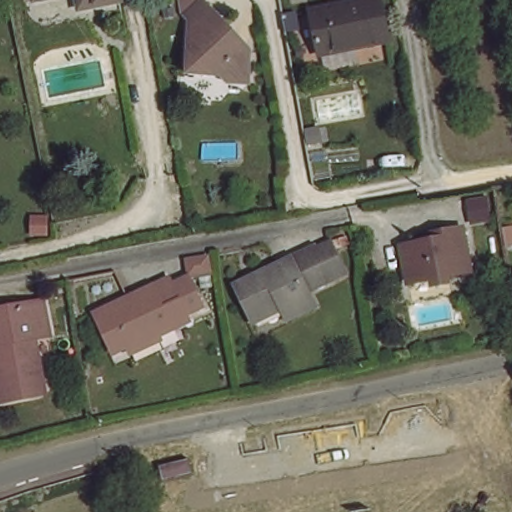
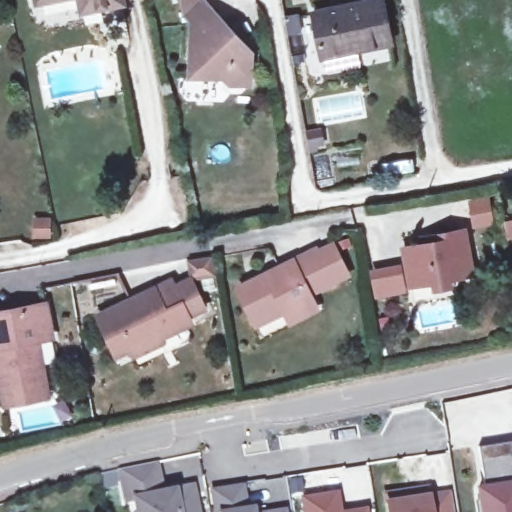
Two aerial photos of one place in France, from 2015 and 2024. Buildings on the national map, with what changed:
unchanged [(81,0),(121,0),(121,2),(94,7),(83,9),(81,0)]
unchanged [(224,27),(232,36),(235,33),(253,52),(247,58),(252,64),(251,84),(231,84),(223,77),(190,75),(191,27),(196,27),(198,25),(188,15),(204,1),(213,10),(226,24),(224,27)]
unchanged [(387,47),(319,62),(309,19),(377,4),(387,47)]
unchanged [(411,283),(404,246),(440,240),(439,233),(464,229),(472,272),(411,283)]
unchanged [(313,307),(286,320),(281,309),(253,323),(235,287),(312,249),(329,241),(344,272),(328,280),(305,291),(313,307)]
unchanged [(175,334),(161,341),(163,346),(136,359),(133,352),(118,359),(100,321),(133,305),(172,286),(174,290),(191,282),(205,311),(188,320),(191,326),(175,334)]
unchanged [(57,341),(42,344),(53,400),(11,409),(0,353),(0,319),(50,308),(57,341)]
new [(484,487),(479,445),(512,440),(512,512),(483,512),(479,488),(484,487)]
new [(193,486),(198,512),(138,512),(135,496),(126,498),(121,468),(156,460),(163,492),(193,486)]
new [(253,508),(254,512),(216,512),(213,486),(241,482),(246,509),(253,508)]
new [(427,494),(449,491),(451,512),(388,512),(386,493),(427,486),(427,494)]
new [(343,510),(369,506),(369,512),(302,512),(300,496),(339,489),(343,510)]
new [(286,512),(273,512),(286,510),(286,512)]

